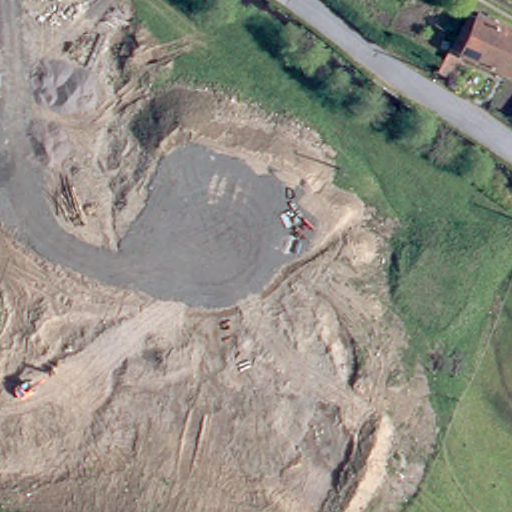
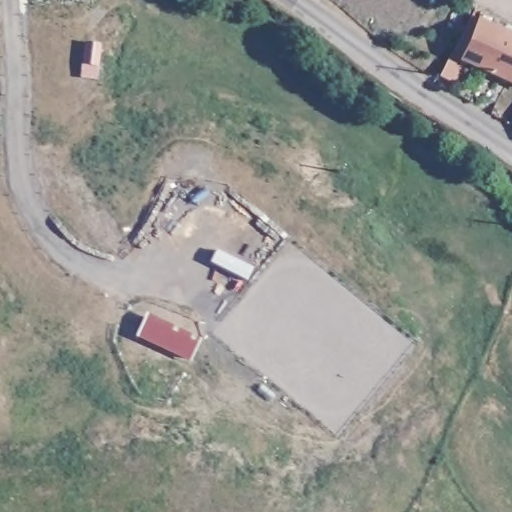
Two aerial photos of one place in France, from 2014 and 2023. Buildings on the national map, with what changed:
unchanged [(466,55),(454,78),(441,71),(470,14),(478,18),(479,16),(512,33),(512,79),(509,78),(466,55)]
new [(148,315),(205,341),(195,364),(139,339),(148,315)]

